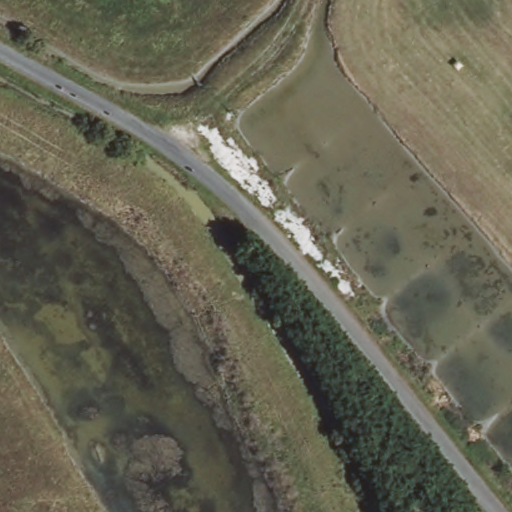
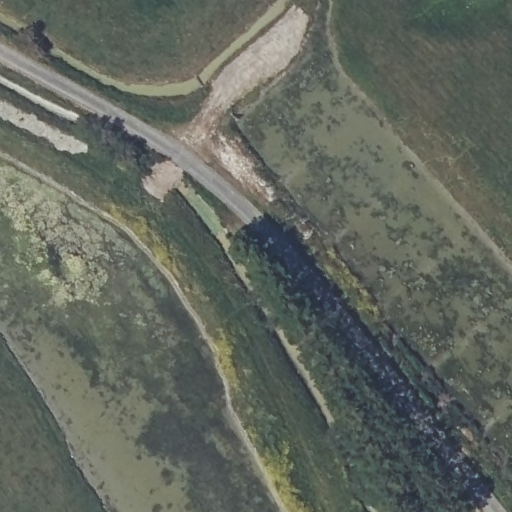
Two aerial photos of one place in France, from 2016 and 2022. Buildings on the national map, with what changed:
unchanged [(425,512),(420,512),(423,509),(425,512)]

